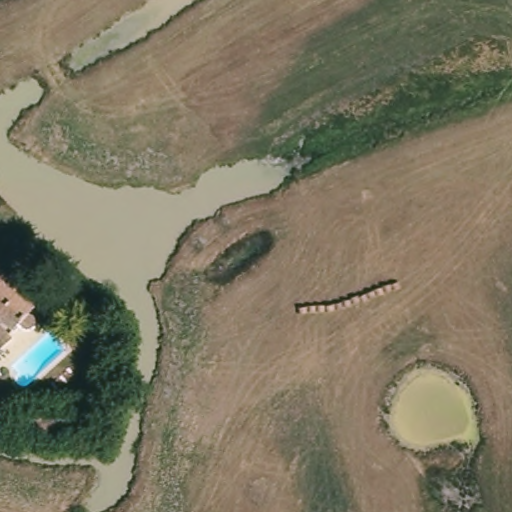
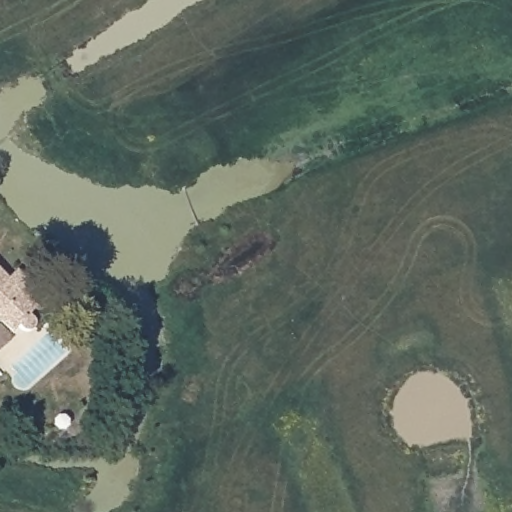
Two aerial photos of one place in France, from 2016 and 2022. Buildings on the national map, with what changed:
unchanged [(8,276),(24,265),(35,280),(21,289),(44,309),(38,314),(45,322),(45,328),(43,333),(38,335),(33,334),(25,330),(20,334),(0,316),(0,269),(8,276)]
unchanged [(14,340),(1,351),(0,350),(0,327),(14,340)]

